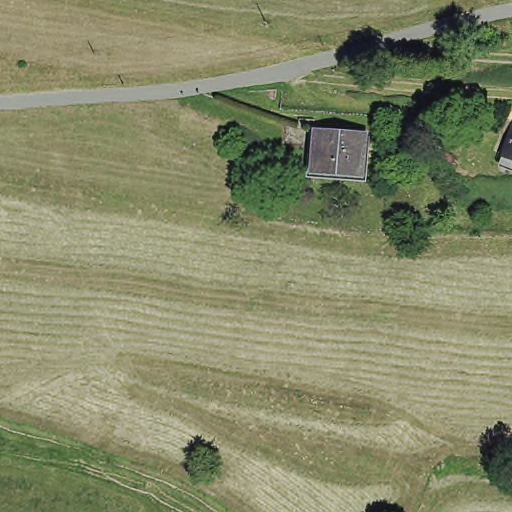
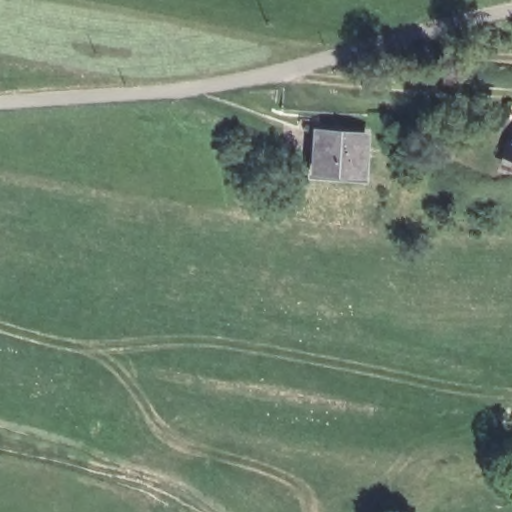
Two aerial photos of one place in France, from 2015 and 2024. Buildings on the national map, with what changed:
unchanged [(499,167),(512,131),(512,172),(499,167)]
unchanged [(363,177),(316,174),(319,136),(365,139),(363,177)]

